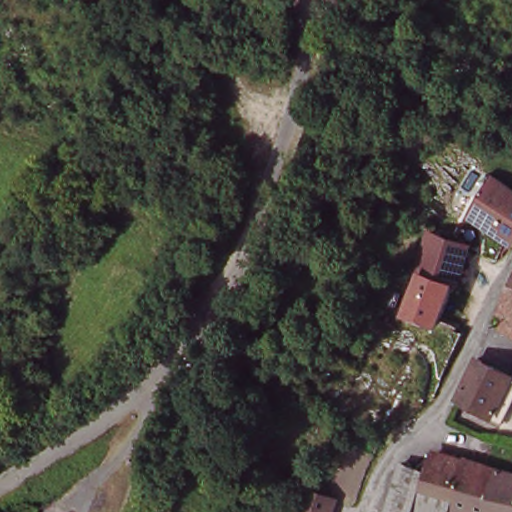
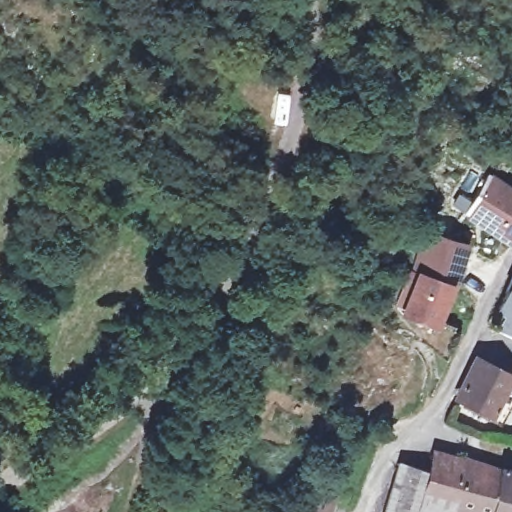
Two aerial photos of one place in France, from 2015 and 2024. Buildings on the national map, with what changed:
unchanged [(512,201),(512,233),(505,245),(464,220),(481,185),(512,201)]
unchanged [(468,254),(452,290),(412,273),(430,236),(468,254)]
unchanged [(405,270),(412,273),(452,290),(434,326),(388,306),(405,270)]
unchanged [(512,280),(512,301),(503,297),(512,280)]
unchanged [(512,306),(512,315),(508,313),(512,306)]
unchanged [(512,383),(512,392),(494,420),(465,402),(481,366),(495,373),(512,383)]
unchanged [(448,512),(384,512),(400,465),(425,471),(430,462),(436,464),(445,436),(465,443),(461,460),(512,474),(512,512),(452,512),(448,511),(448,512)]
unchanged [(328,501),(325,512),(295,512),(300,493),(328,501)]

